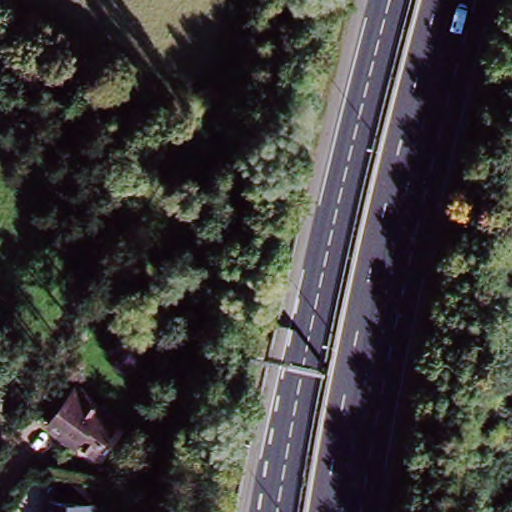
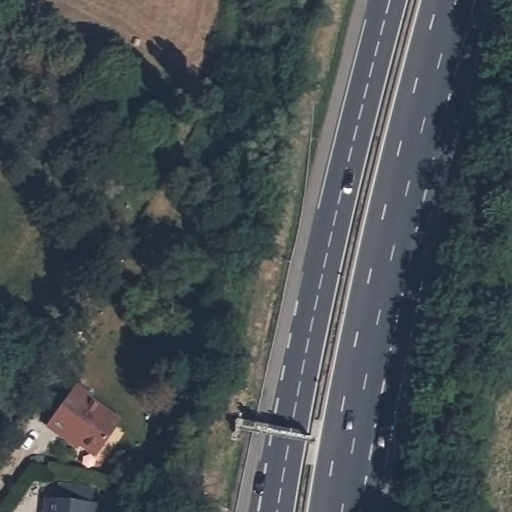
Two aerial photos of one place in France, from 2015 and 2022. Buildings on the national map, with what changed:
unchanged [(60,437),(45,428),(67,390),(70,385),(85,394),(82,399),(115,417),(95,452),(78,442),(76,447),(60,437)]
unchanged [(98,512),(44,512),(45,503),(55,504),(57,488),(92,492),(90,509),(98,510),(98,512)]

